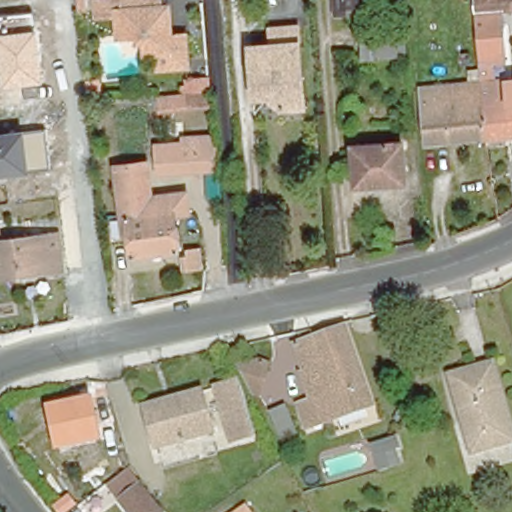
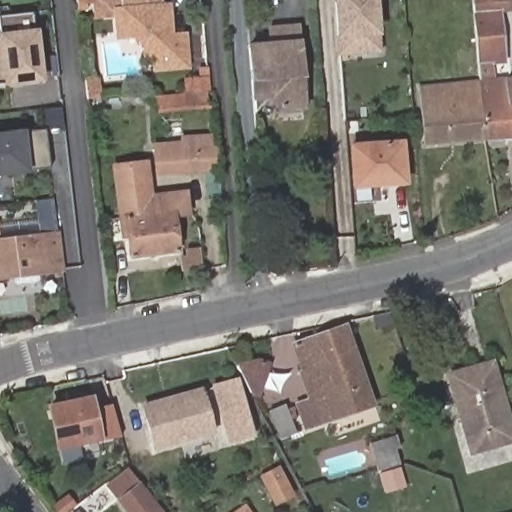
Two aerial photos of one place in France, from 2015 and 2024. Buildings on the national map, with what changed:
unchanged [(133,31),(117,33),(113,7),(122,6),(121,0),(159,0),(159,3),(165,3),(167,30),(183,29),(183,34),(184,63),(154,66),(152,49),(142,50),(141,36),(134,37),(133,31)]
new [(337,57),(335,40),(332,0),(378,0),(380,36),(382,53),(337,57)]
unchanged [(477,24),(476,0),(512,0),(512,10),(502,11),(503,22),(477,24)]
unchanged [(42,83),(0,87),(0,36),(0,32),(0,17),(34,13),(42,83)]
unchanged [(276,111),(274,100),(251,99),(248,43),(268,41),(267,22),(299,18),(305,109),(276,111)]
unchanged [(486,137),(481,83),(477,24),(503,22),(507,61),(491,64),(493,81),(506,80),(506,87),(511,136),(486,137)]
demolished [(363,63),(363,51),(362,36),(403,33),(404,49),(405,61),(363,63)]
unchanged [(158,91),(184,88),(183,79),(207,77),(209,105),(160,110),(158,91)]
unchanged [(506,80),(512,80),(512,135),(511,136),(506,87),(506,80)]
unchanged [(428,141),(423,88),(481,83),(486,137),(428,141)]
unchanged [(50,168),(28,172),(0,175),(0,132),(23,130),(47,128),(50,168)]
unchanged [(157,172),(156,146),(183,144),(184,151),(217,149),(218,168),(157,172)]
unchanged [(399,186),(351,190),(348,152),(396,149),(399,186)]
unchanged [(121,217),(115,166),(148,163),(151,189),(152,197),(187,192),(191,214),(175,216),(179,248),(176,248),(176,252),(133,258),(133,254),(131,254),(129,237),(123,238),(121,217)]
unchanged [(0,276),(0,229),(1,241),(58,234),(63,269),(0,276)]
unchanged [(366,409),(302,433),(295,408),(307,404),(297,374),(299,374),(289,348),(337,329),(366,409)]
unchanged [(258,392),(252,390),(245,376),(239,364),(261,359),(270,362),(258,392)]
unchanged [(505,442),(470,452),(468,442),(448,375),(482,365),(505,442)]
unchanged [(236,386),(248,434),(228,438),(216,391),(236,386)]
unchanged [(202,389),(213,431),(155,448),(144,405),(202,389)]
unchanged [(101,443),(54,452),(45,404),(92,395),(101,443)]
unchanged [(279,409),(294,437),(272,447),(260,420),(279,409)]
unchanged [(371,444),(389,436),(393,435),(394,434),(400,449),(397,450),(401,463),(381,471),(371,444)]
unchanged [(132,484),(155,512),(120,512),(119,511),(111,500),(116,496),(132,484)]

